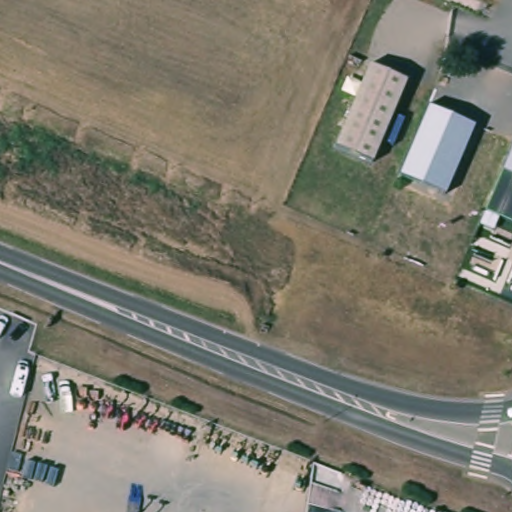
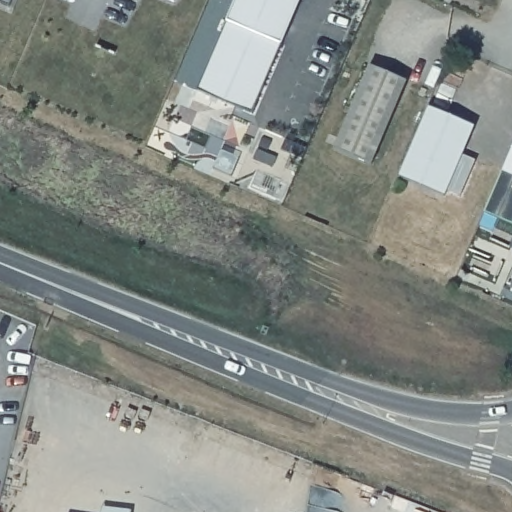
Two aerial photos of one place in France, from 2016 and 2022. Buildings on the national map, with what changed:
new [(0,1),(0,0),(11,0),(9,5),(0,1)]
new [(172,0),(174,0),(174,1),(172,0)]
new [(299,0),(251,113),(196,89),(234,0),(299,0)]
unchanged [(335,145),(369,64),(407,79),(373,162),(335,145)]
unchanged [(429,106),(474,125),(445,193),(398,174),(429,106)]
unchanged [(512,148),(512,222),(485,211),(503,170),(512,148)]

